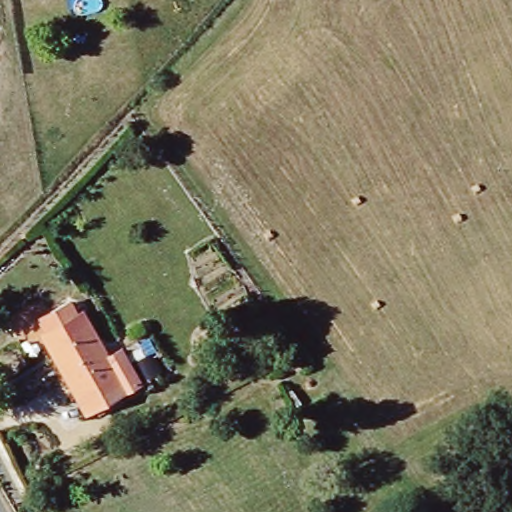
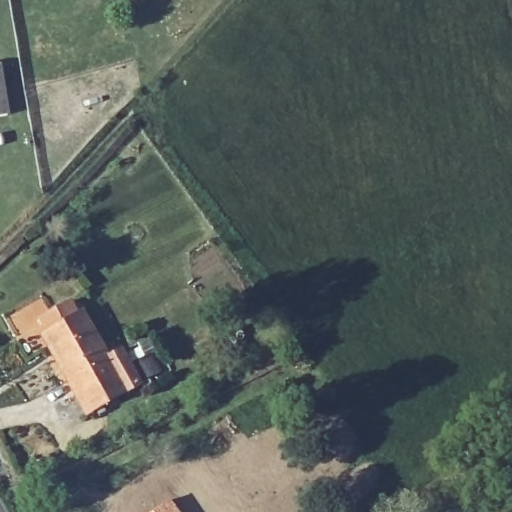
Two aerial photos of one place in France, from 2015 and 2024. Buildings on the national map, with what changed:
new [(0,116),(0,63),(9,114),(0,116)]
unchanged [(103,365),(115,357),(135,390),(83,420),(39,344),(43,341),(35,327),(66,309),(74,323),(77,321),(103,365)]
new [(177,512),(150,512),(168,499),(177,512)]

